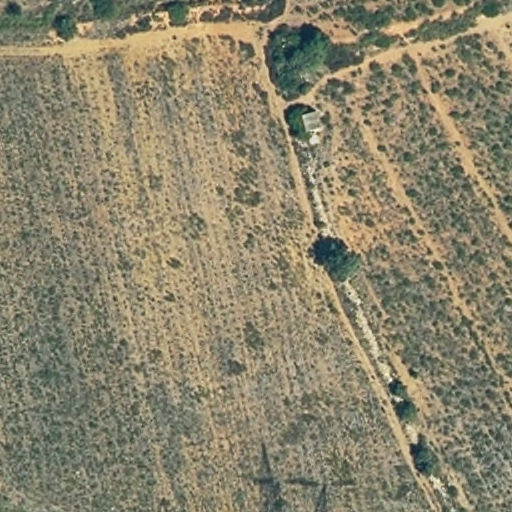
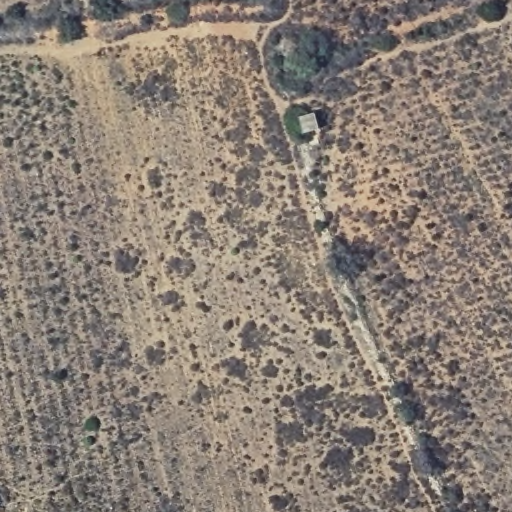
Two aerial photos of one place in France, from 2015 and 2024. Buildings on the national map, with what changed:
unchanged [(318,111),(323,125),(304,129),(299,115),(318,111)]

